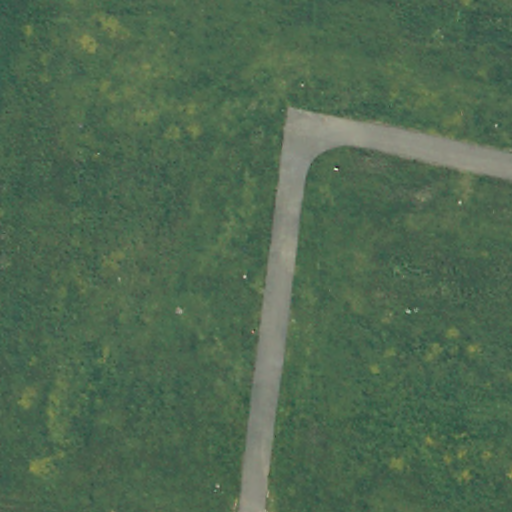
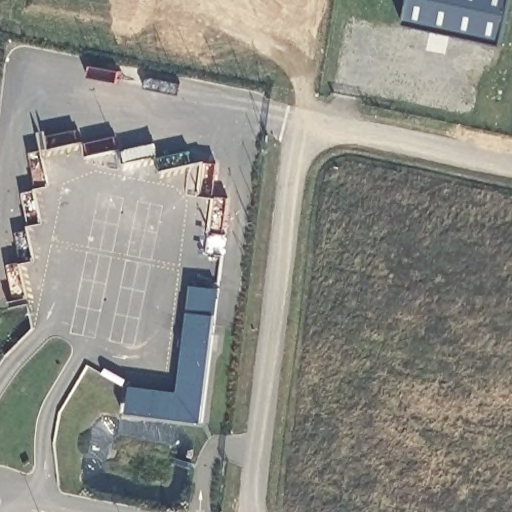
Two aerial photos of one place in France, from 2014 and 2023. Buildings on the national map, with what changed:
new [(404,24),(410,0),(512,0),(501,44),(404,24)]
new [(184,394),(193,313),(197,287),(223,290),(220,316),(207,423),(132,414),(136,388),(184,394)]

